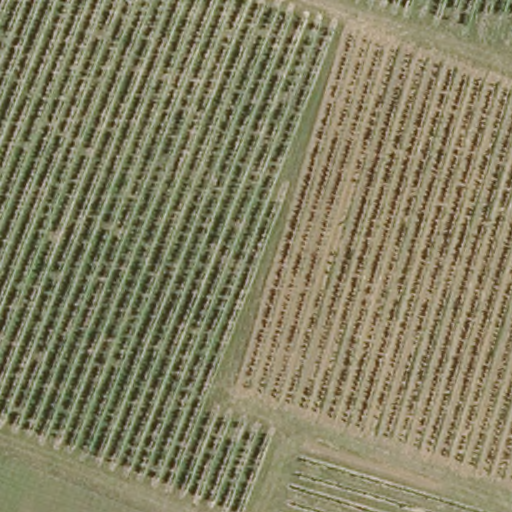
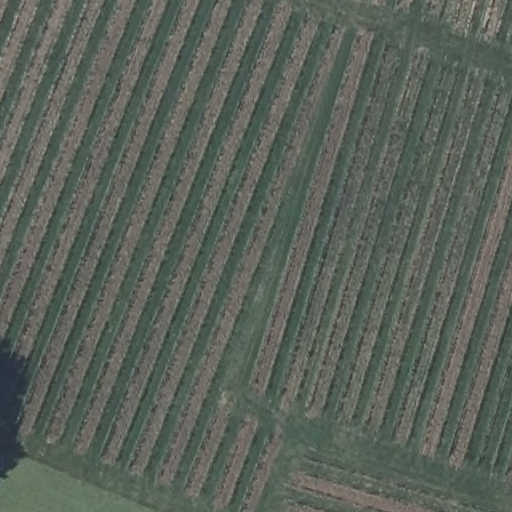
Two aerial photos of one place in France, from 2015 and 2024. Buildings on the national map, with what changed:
[]

